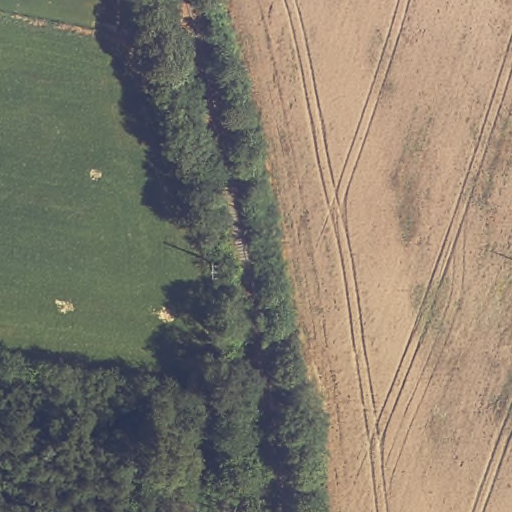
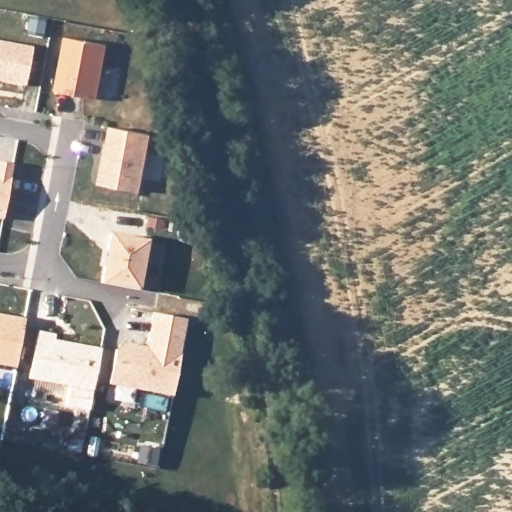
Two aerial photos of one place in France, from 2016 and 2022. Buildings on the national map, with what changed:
new [(67,36),(108,43),(100,96),(57,90),(67,36)]
new [(34,47),(27,85),(0,80),(0,41),(34,47)]
new [(101,164),(102,164),(107,126),(146,132),(137,190),(97,184),(101,164)]
new [(16,162),(7,216),(0,215),(0,160),(16,162)]
new [(106,265),(109,265),(112,249),(109,248),(111,232),(148,238),(141,287),(104,281),(106,265)]
new [(116,349),(126,341),(147,345),(152,310),(187,316),(174,392),(110,382),(116,349)]
new [(26,318),(17,368),(0,366),(0,314),(26,318)]
new [(39,327),(56,330),(55,335),(101,343),(95,385),(31,375),(39,327)]

